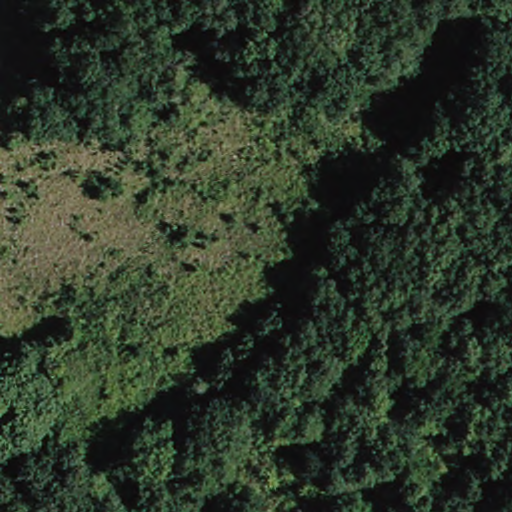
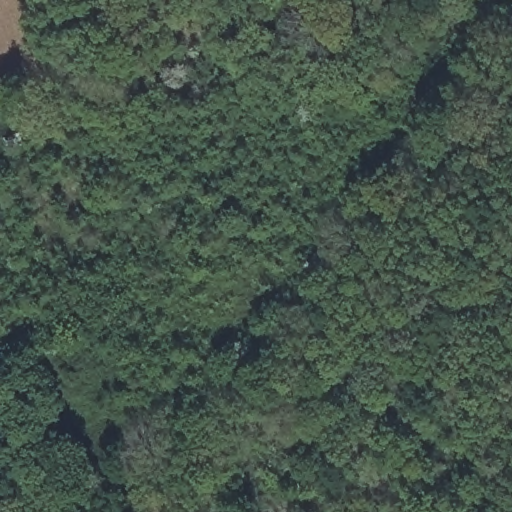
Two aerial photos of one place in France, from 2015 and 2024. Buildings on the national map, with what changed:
[]

